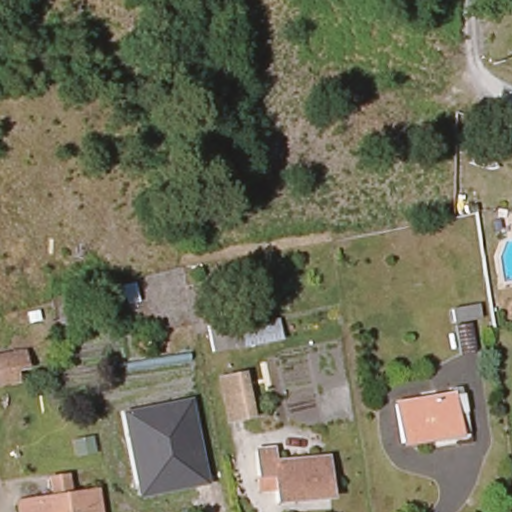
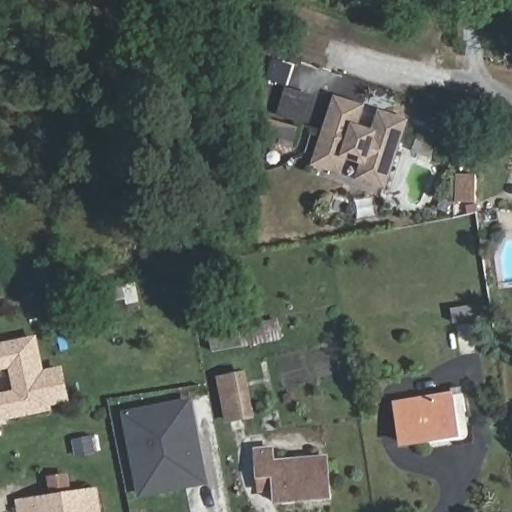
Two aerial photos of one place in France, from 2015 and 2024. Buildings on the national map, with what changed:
new [(312,165),(334,95),(365,105),(358,124),(372,128),(377,109),(409,119),(387,190),(356,180),(361,164),(347,159),(342,175),(312,165)]
unchanged [(276,320),(277,343),(240,350),(235,328),(276,320)]
unchanged [(457,326),(468,324),(470,323),(477,352),(464,353),(457,326)]
new [(38,335),(45,370),(64,366),(72,401),(52,405),(52,410),(7,420),(7,425),(0,426),(0,393),(14,390),(9,369),(0,371),(0,343),(38,335)]
demolished [(32,372),(22,374),(24,387),(0,392),(0,362),(30,356),(32,372)]
unchanged [(245,372),(252,416),(227,421),(219,377),(245,372)]
unchanged [(396,405),(452,395),(461,393),(469,432),(458,434),(400,443),(396,405)]
unchanged [(139,497),(124,411),(194,397),(209,483),(139,497)]
unchanged [(278,448),(278,464),(329,460),(334,496),(281,501),(277,476),(266,477),(263,450),(278,448)]
unchanged [(46,495),(44,483),(67,479),(69,491),(92,487),(95,512),(19,512),(17,500),(46,495)]

